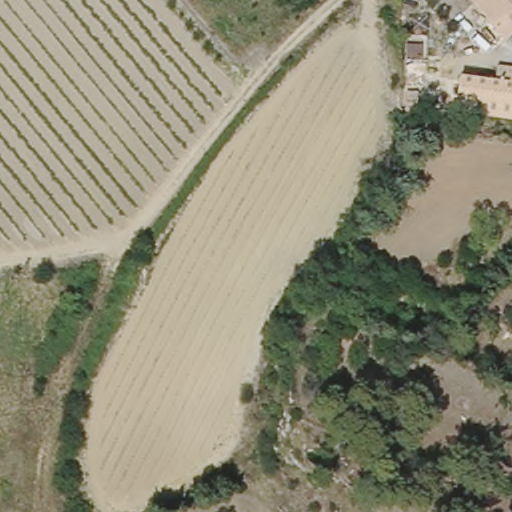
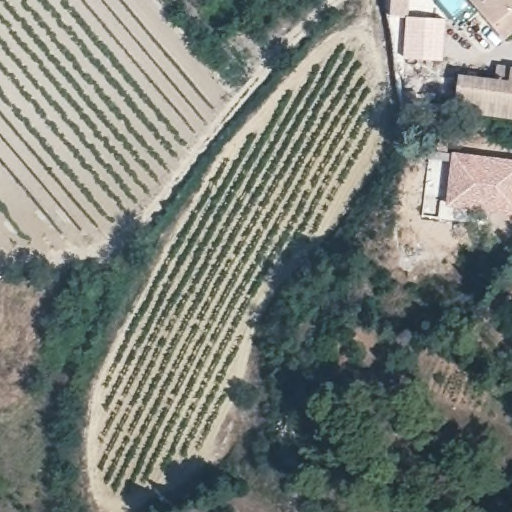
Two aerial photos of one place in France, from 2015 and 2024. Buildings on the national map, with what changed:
new [(390,15),(391,0),(409,0),(408,16),(390,15)]
unchanged [(470,0),(512,0),(512,34),(505,40),(470,0)]
new [(443,61),(403,57),(408,16),(447,18),(443,61)]
unchanged [(460,74),(496,78),(497,65),(512,66),(512,120),(455,112),(460,74)]
new [(512,158),(512,213),(446,205),(452,151),(512,158)]

